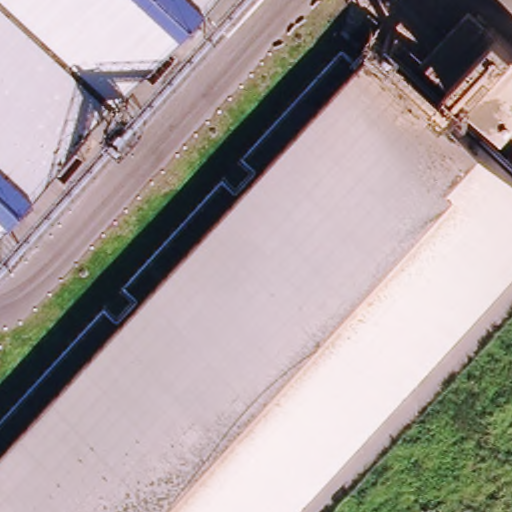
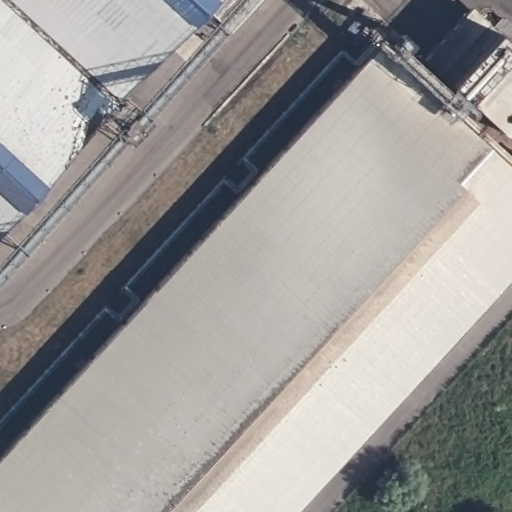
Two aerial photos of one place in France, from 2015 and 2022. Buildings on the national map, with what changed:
unchanged [(28,191),(0,223),(0,0),(204,0),(28,191)]
unchanged [(453,20),(512,73),(512,106),(500,120),(423,50),(453,20)]
unchanged [(512,173),(512,278),(296,512),(0,512),(0,453),(375,46),(512,173)]

